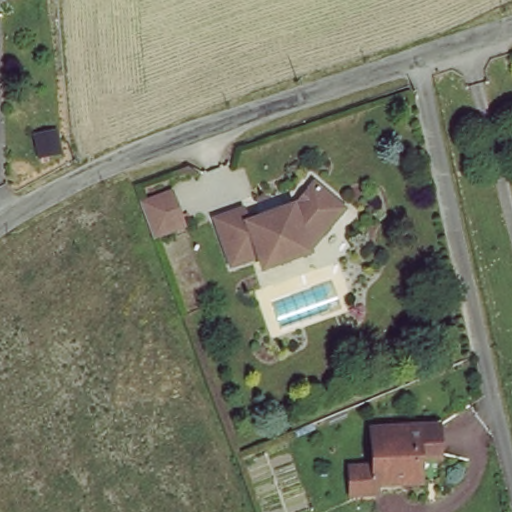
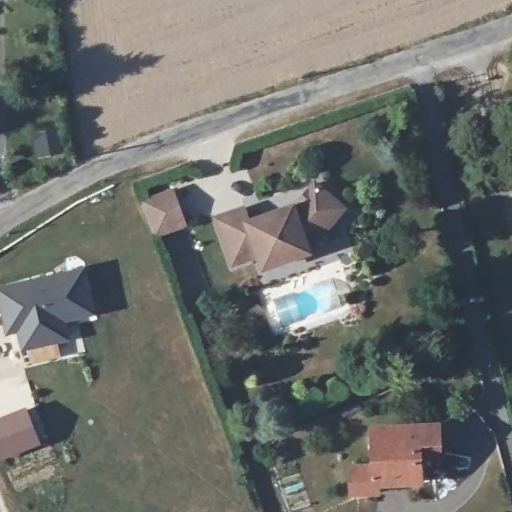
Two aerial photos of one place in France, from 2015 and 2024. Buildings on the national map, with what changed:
unchanged [(343,203),(310,247),(265,267),(259,253),(234,261),(221,219),(243,210),(249,222),(301,205),(315,184),(343,203)]
unchanged [(176,198),(187,231),(157,240),(145,207),(176,198)]
new [(5,315),(0,292),(0,287),(84,270),(93,313),(62,319),(66,338),(23,347),(19,328),(8,330),(5,315)]
new [(29,410),(41,443),(0,458),(0,421),(29,410)]
unchanged [(435,451),(416,453),(415,482),(376,484),(375,496),(352,497),(347,470),(370,469),(369,430),(435,426),(435,451)]

